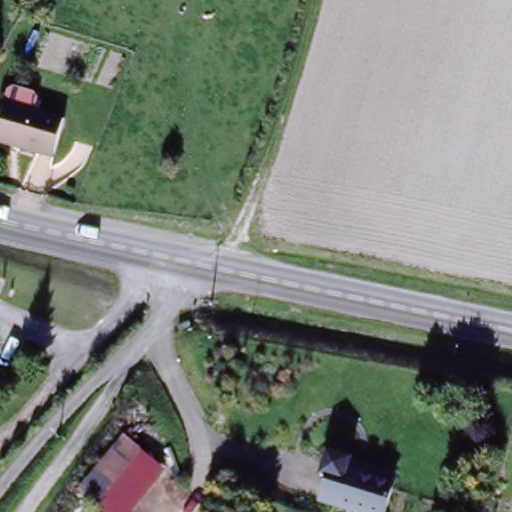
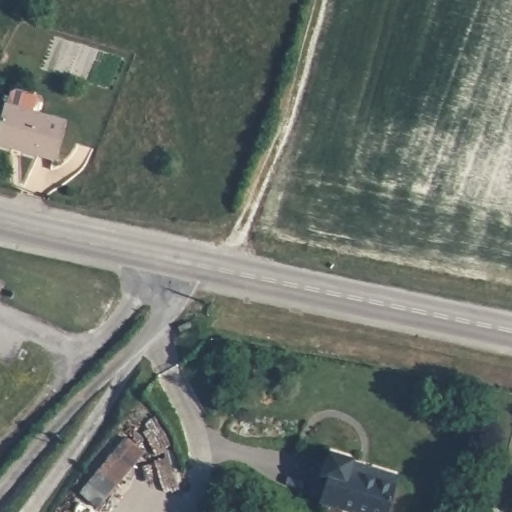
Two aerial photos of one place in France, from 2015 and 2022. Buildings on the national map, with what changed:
unchanged [(65,117),(54,154),(0,139),(0,104),(2,99),(65,117)]
unchanged [(125,436),(170,471),(134,512),(99,512),(77,495),(125,436)]
unchanged [(383,512),(340,512),(317,505),(325,480),(317,478),(327,455),(350,462),(349,465),(371,473),(387,479),(390,486),(383,512)]
unchanged [(512,501),(512,506),(510,505),(512,501)]

